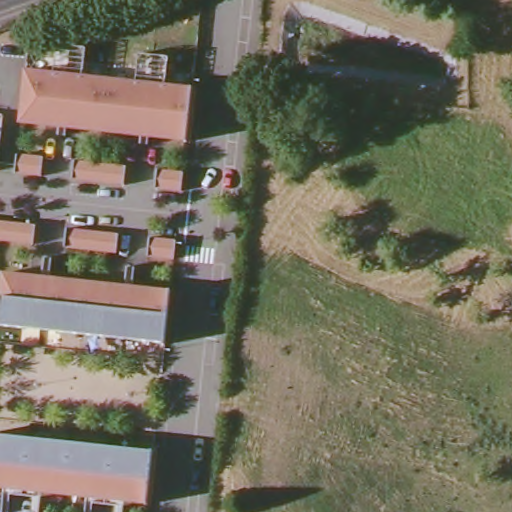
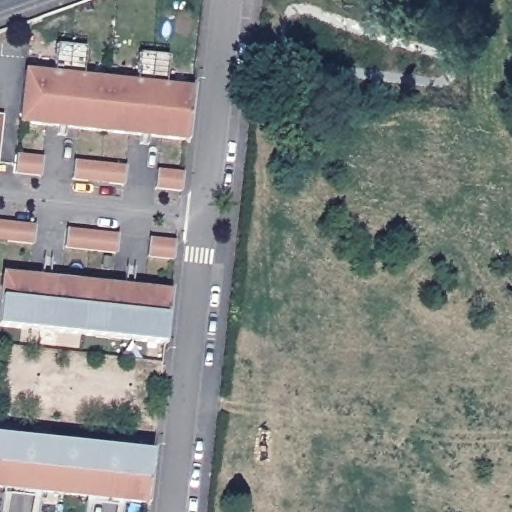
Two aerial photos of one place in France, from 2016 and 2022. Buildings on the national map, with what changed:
unchanged [(161,86),(188,89),(183,141),(15,122),(21,71),(49,74),(52,45),(81,49),(78,77),(131,83),(134,54),(164,57),(161,86)]
unchanged [(43,158),(42,177),(15,174),(17,155),(43,158)]
unchanged [(127,167),(125,186),(73,180),(74,162),(127,167)]
unchanged [(184,174),(183,192),(156,189),(158,171),(184,174)]
unchanged [(36,226),(34,245),(0,241),(0,222),(36,226)]
unchanged [(119,235),(117,254),(65,248),(67,230),(119,235)]
unchanged [(177,242),(175,260),(148,257),(151,239),(177,242)]
unchanged [(168,328),(166,344),(0,327),(0,317),(4,275),(171,292),(168,328)]
unchanged [(154,452),(148,505),(0,488),(0,435),(154,452)]

